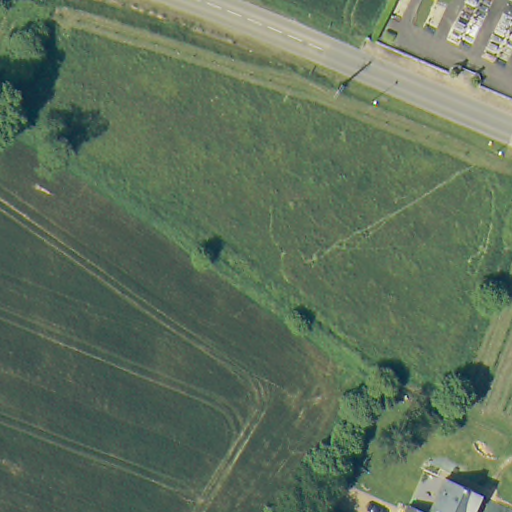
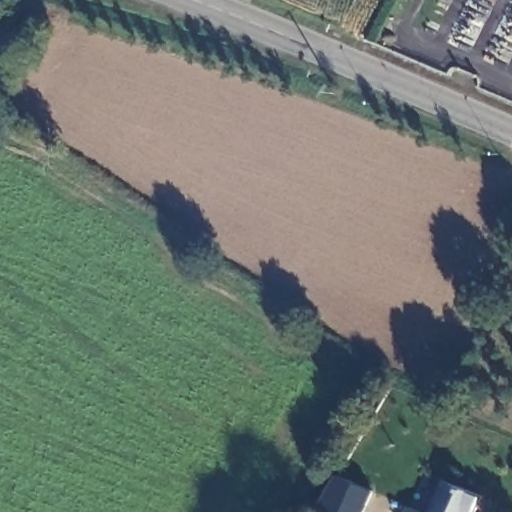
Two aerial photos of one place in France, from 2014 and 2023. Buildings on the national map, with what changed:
new [(339,475),(374,490),(363,512),(325,512),(319,509),(339,475)]
unchanged [(448,479),(484,495),(476,512),(433,512),(448,479)]
unchanged [(415,505),(431,512),(412,512),(415,505)]

